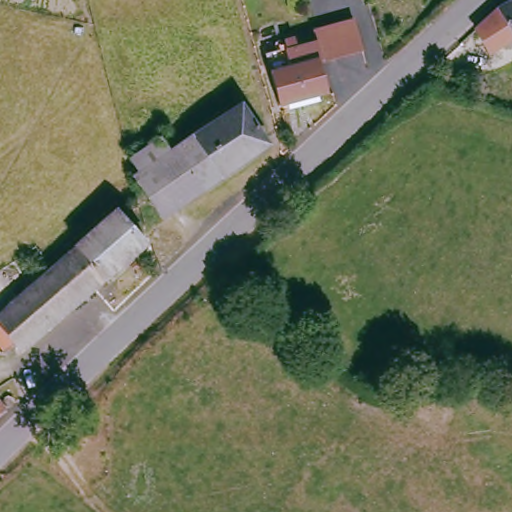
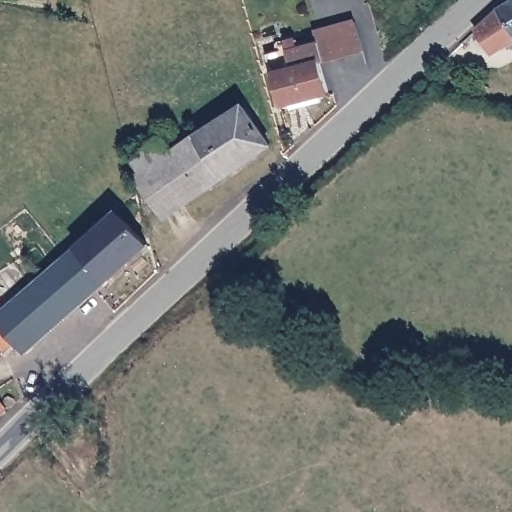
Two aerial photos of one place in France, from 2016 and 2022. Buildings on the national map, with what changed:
unchanged [(503,0),(512,0),(512,36),(485,51),(471,27),(496,4),(503,0)]
unchanged [(314,89),(315,95),(306,98),(304,92),(276,99),(264,50),(282,45),(280,36),(290,34),(292,42),(312,36),(310,25),(351,16),(357,46),(318,56),(315,57),(323,87),(314,89)]
unchanged [(154,157),(137,169),(127,155),(159,134),(168,147),(238,99),(265,138),(182,196),(154,157)]
unchanged [(154,157),(182,196),(160,212),(132,172),(137,169),(154,157)]
unchanged [(85,224),(93,216),(97,222),(112,208),(142,241),(18,350),(10,339),(0,347),(0,306),(16,292),(89,228),(85,224)]
unchanged [(0,414),(0,399),(7,408),(0,414)]

